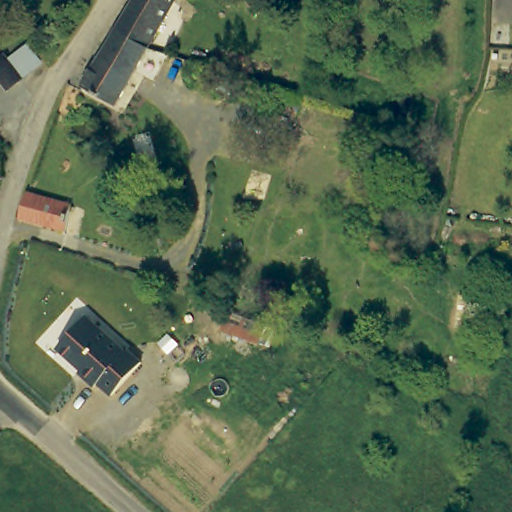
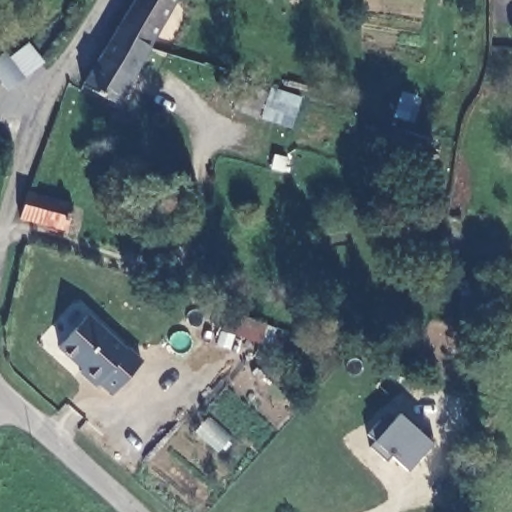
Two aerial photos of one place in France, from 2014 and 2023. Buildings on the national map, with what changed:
unchanged [(150,41),(119,23),(133,0),(176,0),(150,41)]
unchanged [(118,97),(84,78),(119,23),(150,41),(118,97)]
unchanged [(22,53),(33,47),(43,64),(10,89),(6,81),(0,84),(0,61),(19,49),(22,53)]
unchanged [(33,190),(75,203),(66,228),(30,217),(23,214),(33,190)]
unchanged [(125,351),(128,348),(144,362),(114,397),(98,384),(94,388),(79,374),(80,371),(57,347),(88,316),(125,351)]
new [(421,433),(422,430),(434,440),(432,443),(408,472),(392,458),(387,462),(370,448),(376,444),(374,442),(376,440),(368,435),(381,423),(388,425),(399,414),(421,433)]

